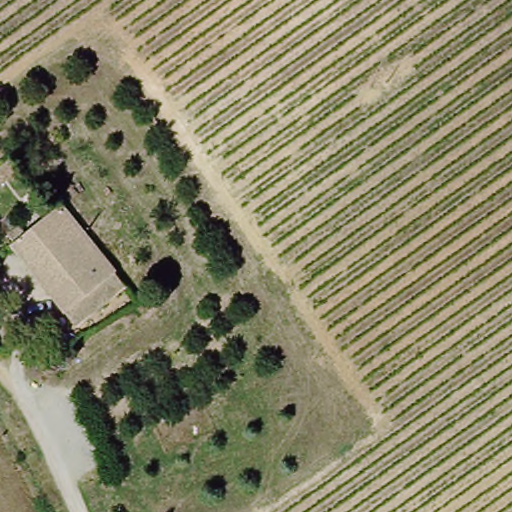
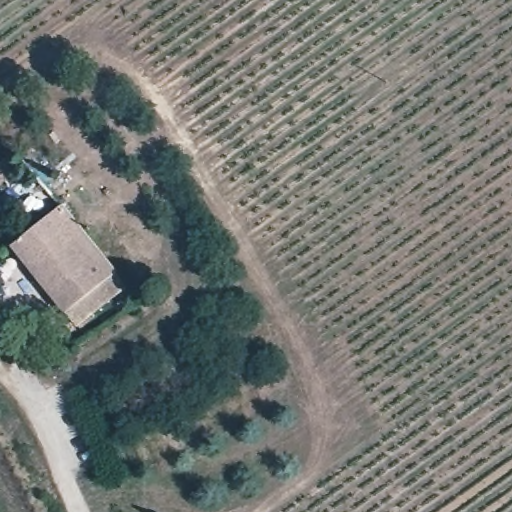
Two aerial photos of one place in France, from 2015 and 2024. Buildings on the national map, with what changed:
unchanged [(119,283),(75,318),(16,242),(28,232),(34,240),(65,215),(119,283)]

